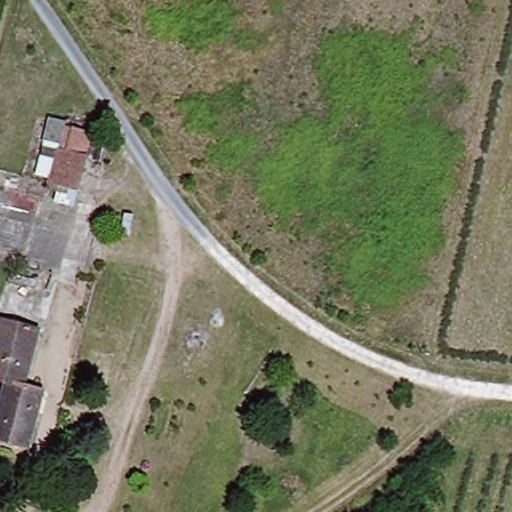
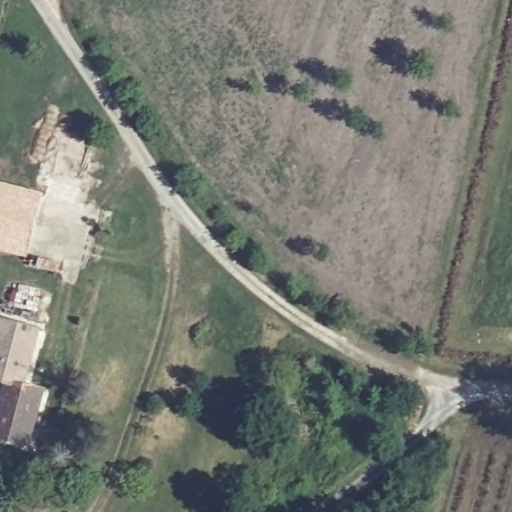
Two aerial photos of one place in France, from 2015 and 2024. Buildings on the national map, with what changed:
unchanged [(94,136),(77,203),(47,196),(50,185),(41,183),(56,126),(94,136)]
new [(40,216),(28,255),(27,258),(0,251),(0,181),(45,193),(40,216)]
unchanged [(0,380),(0,335),(6,314),(40,325),(23,387),(38,392),(23,445),(0,439),(0,401),(5,382),(0,380)]

